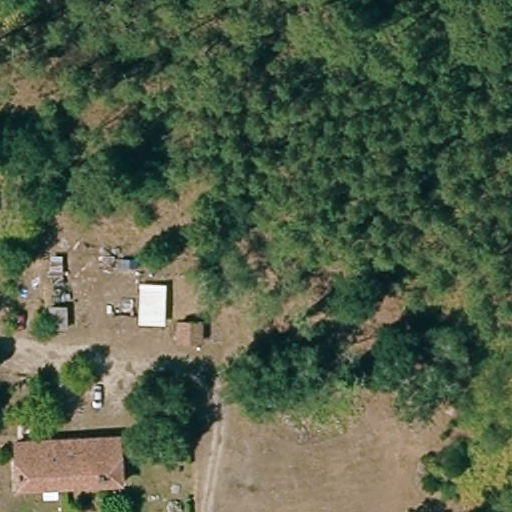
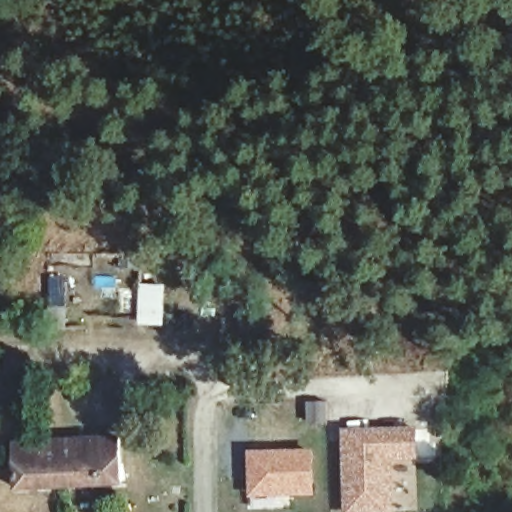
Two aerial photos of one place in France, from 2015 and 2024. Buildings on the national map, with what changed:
unchanged [(138,264),(125,264),(125,255),(139,255),(138,264)]
unchanged [(68,324),(54,324),(54,305),(68,304),(68,324)]
new [(437,458),(391,463),(391,512),(341,512),(340,426),(432,427),(437,458)]
unchanged [(114,484),(10,490),(8,445),(110,439),(114,484)]
new [(313,448),(315,495),(249,498),(246,450),(313,448)]

